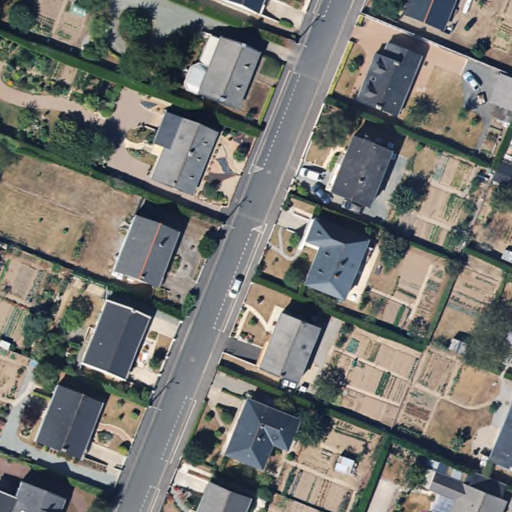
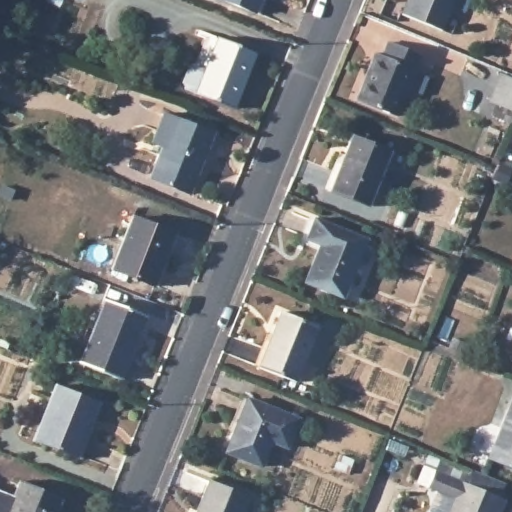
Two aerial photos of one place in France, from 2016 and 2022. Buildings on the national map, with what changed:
unchanged [(258,12),(228,0),(263,0),(258,12)]
unchanged [(440,30),(404,16),(410,0),(451,0),(440,30)]
unchanged [(257,57),(237,107),(188,88),(207,38),(257,57)]
unchanged [(388,49),(418,60),(394,118),(354,103),(373,58),(382,62),(388,49)]
unchanged [(512,117),(486,106),(496,78),(512,84),(512,117)]
unchanged [(216,134),(191,195),(153,180),(167,146),(156,141),(167,114),(216,134)]
unchanged [(393,148),(369,207),(332,192),(355,133),(393,148)]
unchanged [(173,235),(152,288),(112,272),(133,219),(173,235)]
unchanged [(364,243),(342,298),(304,283),(318,247),(307,242),(314,223),(364,243)]
unchanged [(141,320),(118,375),(79,360),(103,304),(141,320)]
unchanged [(323,328),(300,383),(261,367),(283,313),(323,328)]
unchanged [(512,357),(512,362),(511,361),(512,357)]
unchanged [(102,402),(80,455),(35,438),(57,384),(102,402)]
unchanged [(286,411),(265,465),(231,451),(252,398),(286,411)]
unchanged [(512,404),(512,466),(490,456),(512,404)]
unchanged [(499,501),(503,504),(499,512),(451,512),(455,504),(427,492),(435,475),(466,488),(472,473),(505,486),(499,501)]
unchanged [(241,512),(199,512),(211,483),(247,496),(241,512)]
unchanged [(55,512),(0,512),(0,499),(10,503),(17,487),(58,505),(55,512)]

